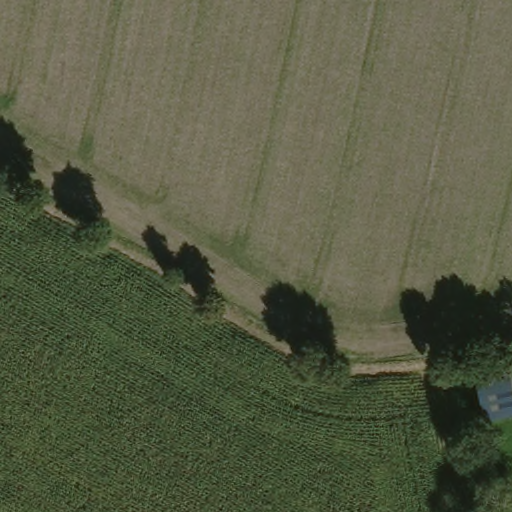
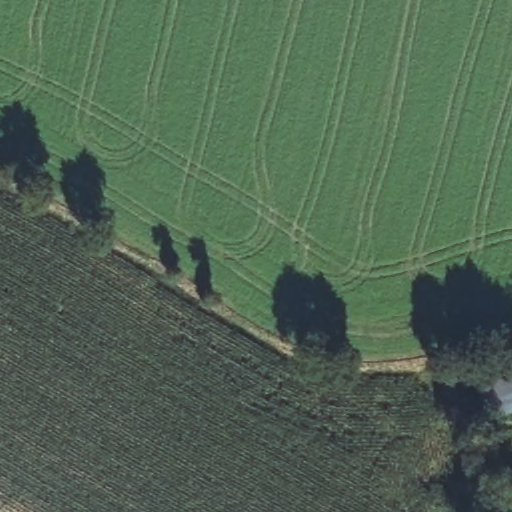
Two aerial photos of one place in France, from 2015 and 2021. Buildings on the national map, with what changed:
unchanged [(512,368),(512,414),(504,416),(501,401),(495,372),(512,368)]

